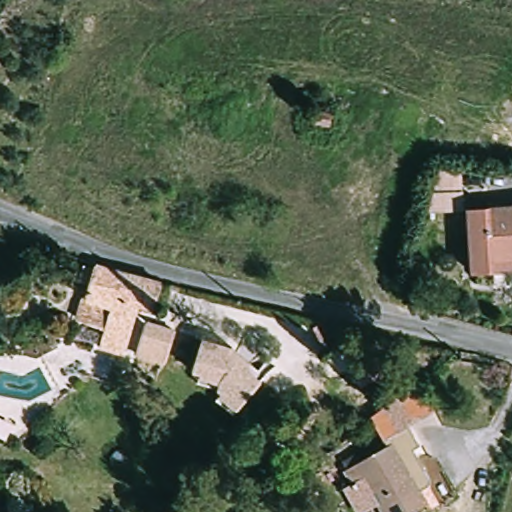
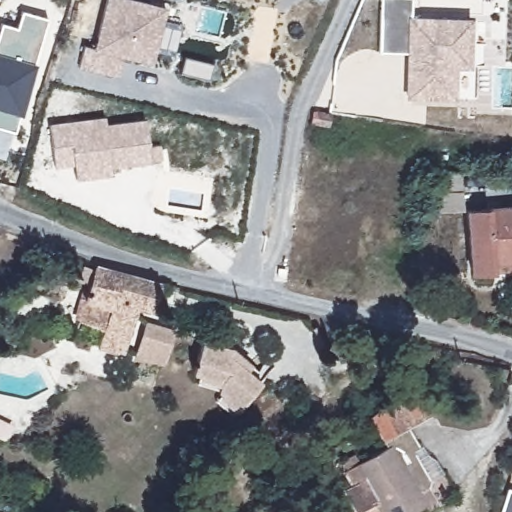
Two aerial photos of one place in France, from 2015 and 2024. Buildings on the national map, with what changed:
new [(94,47),(105,0),(138,0),(164,6),(152,61),(123,55),(118,75),(78,66),(83,45),(94,47)]
new [(472,68),(457,68),(457,99),(406,99),(407,53),(379,52),(381,0),(412,0),(412,17),(473,18),(472,68)]
new [(15,26),(20,9),(48,17),(33,62),(35,62),(21,115),(17,113),(13,130),(0,127),(0,22),(15,26)]
unchanged [(327,128),(311,124),(316,107),(332,111),(327,128)]
new [(77,177),(75,162),(55,165),(49,125),(105,118),(107,125),(147,119),(152,160),(111,165),(112,172),(77,177)]
unchanged [(440,173),(459,174),(464,211),(429,214),(440,173)]
unchanged [(512,263),(495,264),(496,273),(470,276),(467,210),(512,207),(512,263)]
unchanged [(97,268),(161,284),(154,310),(139,307),(127,353),(103,347),(107,331),(82,325),(92,287),(80,284),(84,267),(96,270),(97,268)]
unchanged [(149,324),(176,331),(173,343),(168,364),(147,358),(140,356),(149,324)]
unchanged [(214,395),(217,385),(199,380),(200,375),(190,372),(201,338),(230,347),(265,375),(260,381),(235,412),(214,395)]
new [(369,417),(423,386),(437,411),(408,427),(419,446),(414,449),(431,480),(430,486),(439,504),(429,509),(427,505),(422,508),(408,490),(415,485),(416,477),(395,450),(401,445),(387,427),(379,434),(369,417)]
unchanged [(366,508),(349,487),(341,493),(331,480),(369,450),(365,444),(387,427),(401,445),(395,450),(416,477),(415,485),(408,490),(422,508),(417,512),(369,512),(366,508)]

